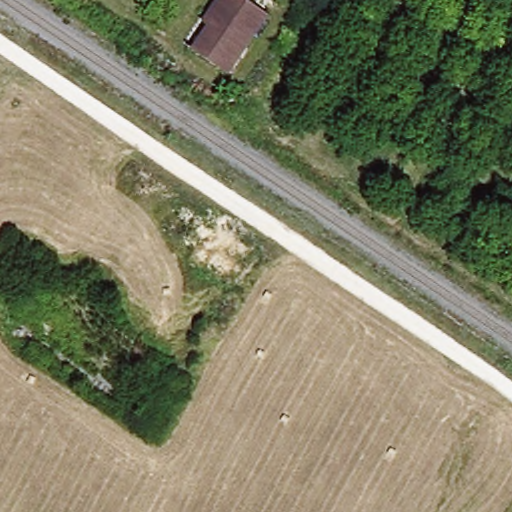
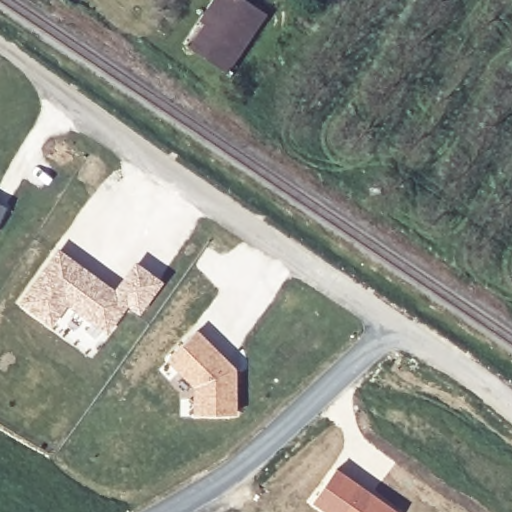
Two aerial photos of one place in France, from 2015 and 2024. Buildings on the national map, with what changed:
unchanged [(222,70),(192,49),(207,26),(200,21),(216,0),(241,0),(262,15),(222,70)]
new [(0,220),(0,201),(8,206),(0,220)]
new [(57,245),(115,287),(135,260),(165,281),(139,316),(128,307),(109,335),(67,307),(51,328),(13,302),(57,245)]
new [(197,327),(237,368),(237,415),(192,415),(192,387),(165,359),(197,327)]
new [(337,467),(400,512),(325,512),(311,502),(337,467)]

